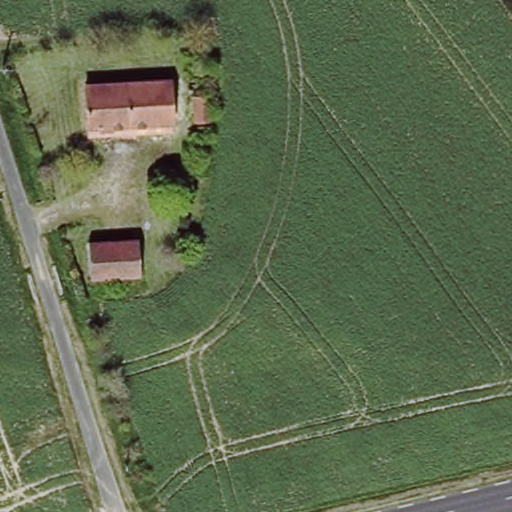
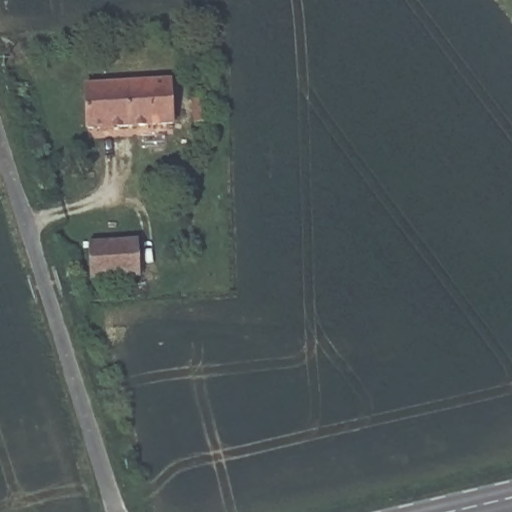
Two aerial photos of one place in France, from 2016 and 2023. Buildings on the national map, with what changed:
unchanged [(174,83),(175,127),(90,130),(89,86),(174,83)]
unchanged [(208,94),(209,120),(192,120),(192,94),(208,94)]
unchanged [(138,243),(140,277),(91,281),(89,247),(138,243)]

